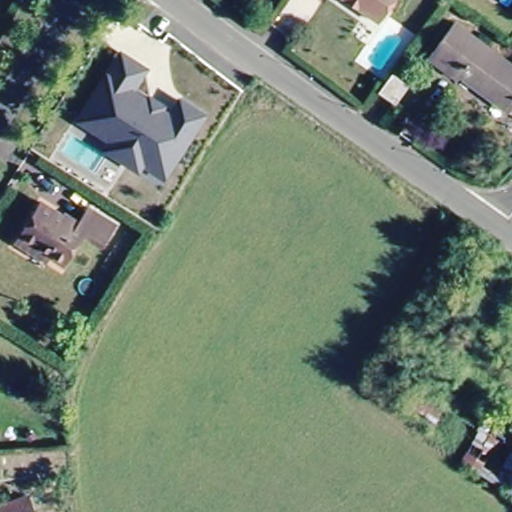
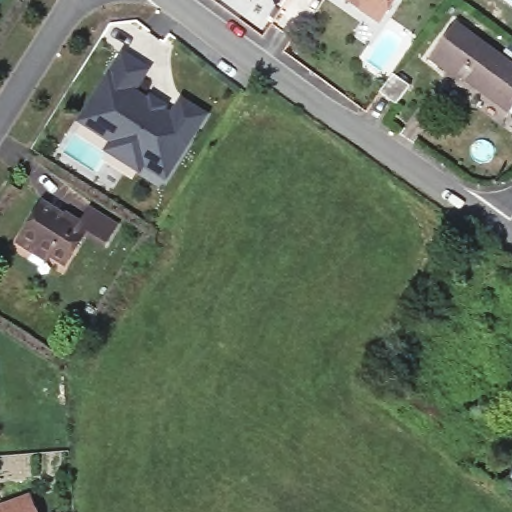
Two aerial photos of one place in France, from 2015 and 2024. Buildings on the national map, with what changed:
unchanged [(380,20),(350,0),(394,0),(380,20)]
unchanged [(437,58),(459,26),(512,65),(512,88),(501,104),(437,58)]
unchanged [(144,164),(142,166),(128,166),(116,159),(110,146),(112,144),(80,124),(93,101),(92,101),(120,56),(145,71),(131,94),(147,104),(150,100),(163,109),(160,111),(170,118),(180,102),(204,116),(193,133),(188,130),(180,142),(185,145),(174,165),(166,177),(144,164)]
unchanged [(395,119),(380,106),(391,92),(406,105),(395,119)]
unchanged [(80,222),(90,207),(117,225),(105,245),(85,233),(66,263),(35,244),(32,249),(16,240),(41,199),(80,222)]
unchanged [(490,436),(478,430),(487,414),(512,427),(512,483),(508,490),(471,470),(490,436)]
unchanged [(512,483),(512,492),(508,490),(512,483)]
unchanged [(34,496),(39,512),(0,512),(0,507),(34,496)]

